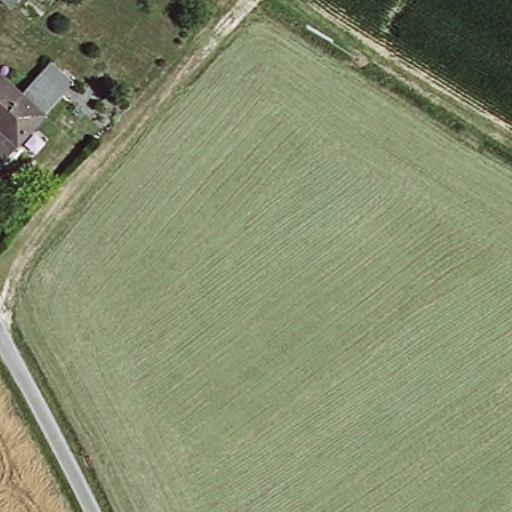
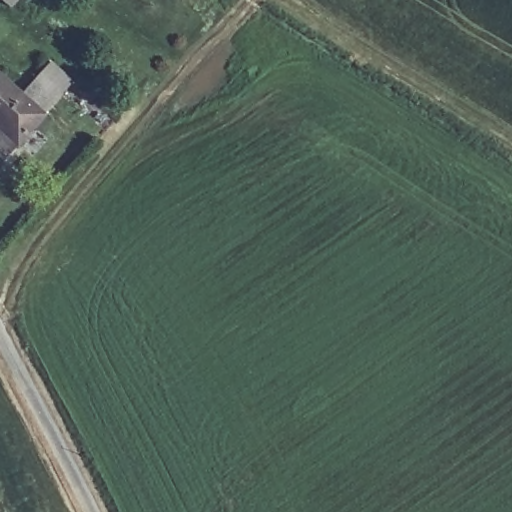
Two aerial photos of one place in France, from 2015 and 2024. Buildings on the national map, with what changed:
unchanged [(40,72),(62,91),(5,155),(0,151),(0,68),(24,90),(40,72)]

